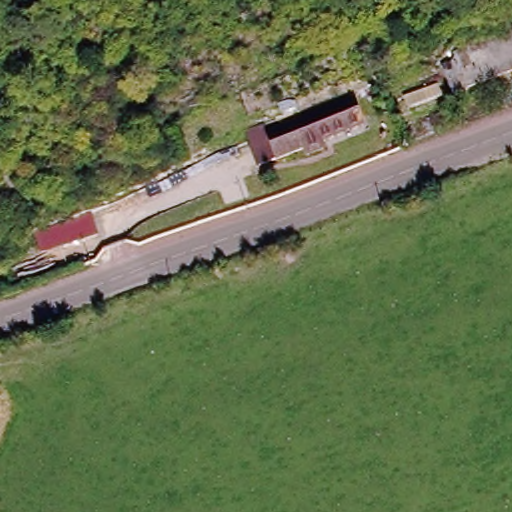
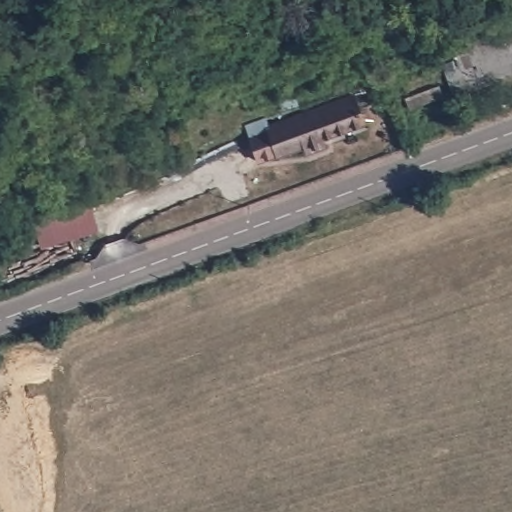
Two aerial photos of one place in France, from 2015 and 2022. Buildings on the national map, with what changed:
unchanged [(454,49),(512,28),(512,70),(467,86),(454,49)]
unchanged [(264,128),(348,98),(357,124),(318,139),(321,144),(303,151),(301,145),(273,154),(264,128)]
unchanged [(99,232),(41,250),(35,229),(93,212),(99,232)]

